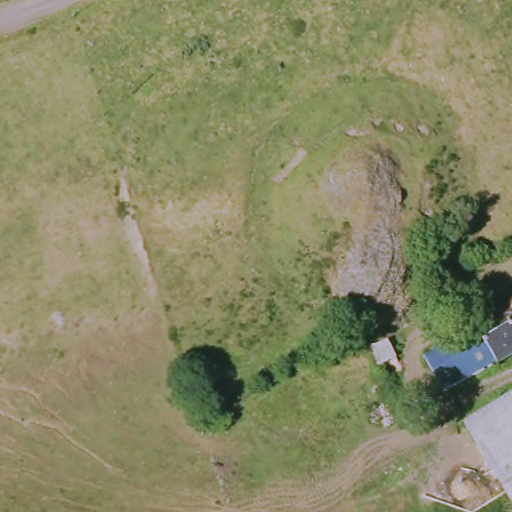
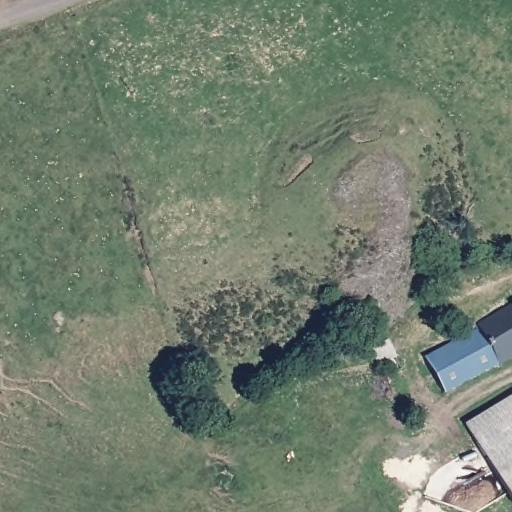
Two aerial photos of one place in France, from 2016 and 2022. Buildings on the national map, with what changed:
unchanged [(439,394),(421,358),(474,329),(473,326),(512,302),(512,354),(439,394)]
unchanged [(389,343),(396,357),(379,366),(374,351),(389,343)]
unchanged [(466,427),(512,398),(512,504),(466,427)]

